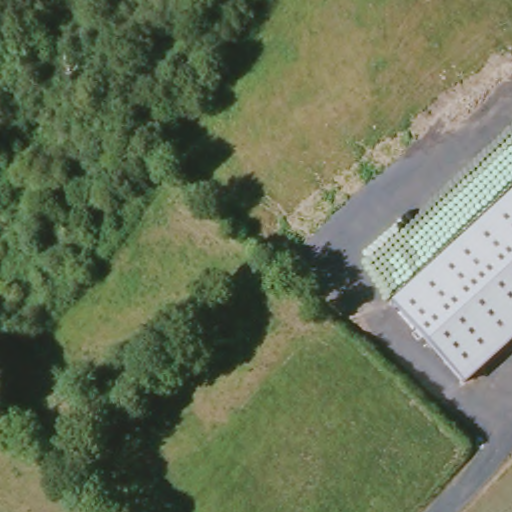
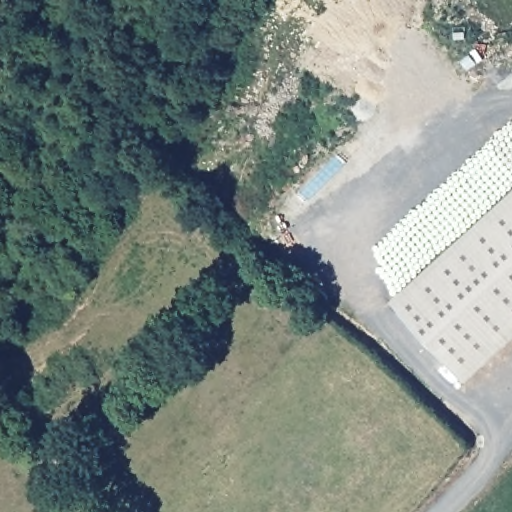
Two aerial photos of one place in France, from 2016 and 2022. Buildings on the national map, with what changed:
unchanged [(512,191),(512,338),(465,380),(392,300),(512,191)]

